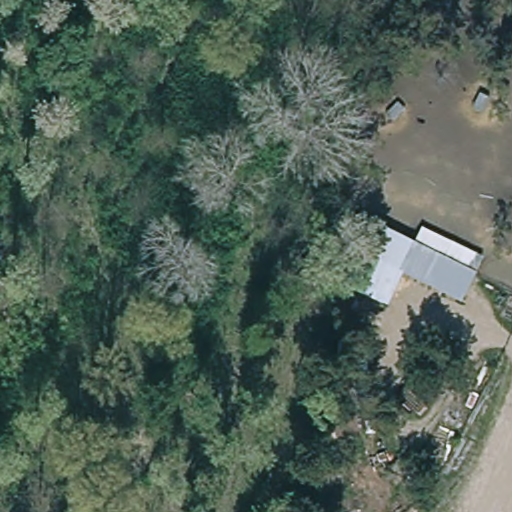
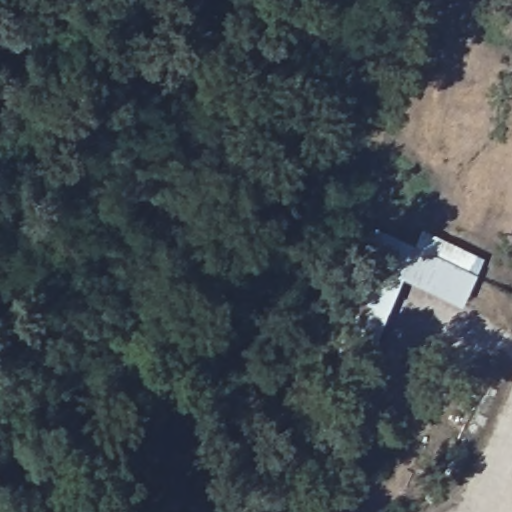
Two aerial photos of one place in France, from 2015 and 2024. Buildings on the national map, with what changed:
unchanged [(489,259),(465,304),(402,276),(428,231),(489,259)]
unchanged [(396,434),(399,453),(379,454),(377,434),(396,434)]

